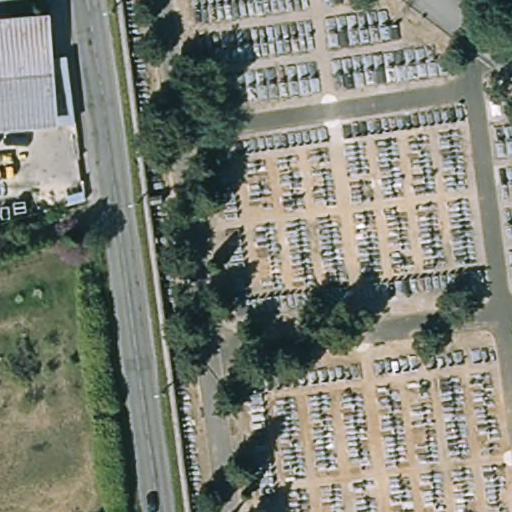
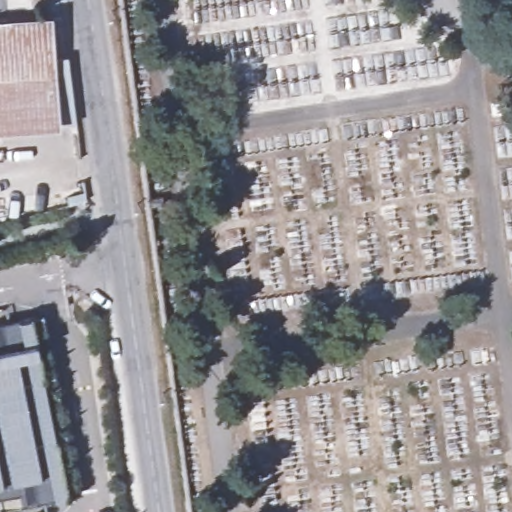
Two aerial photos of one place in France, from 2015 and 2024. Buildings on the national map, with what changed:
unchanged [(54,118),(0,122),(0,20),(46,17),(54,118)]
new [(0,509),(0,310),(4,309),(7,320),(17,319),(29,316),(41,313),(75,493),(62,496),(0,509)]

